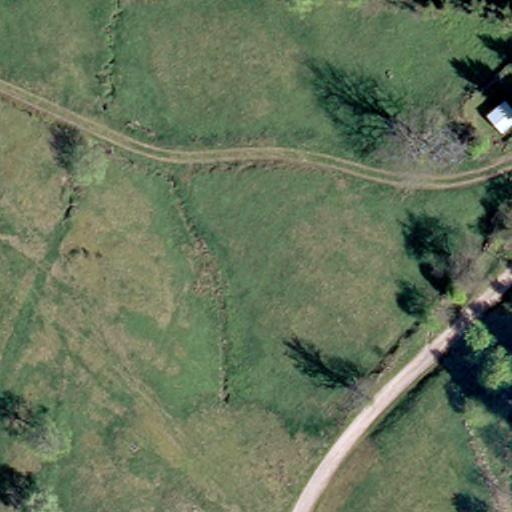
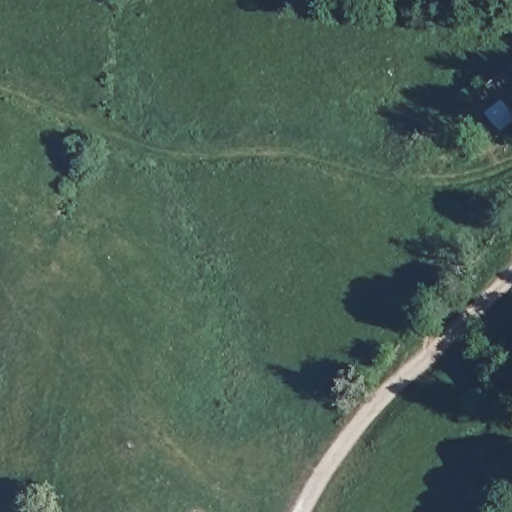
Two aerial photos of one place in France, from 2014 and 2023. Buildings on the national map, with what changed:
unchanged [(512,122),(504,129),(491,113),(507,99),(512,105),(512,122)]

